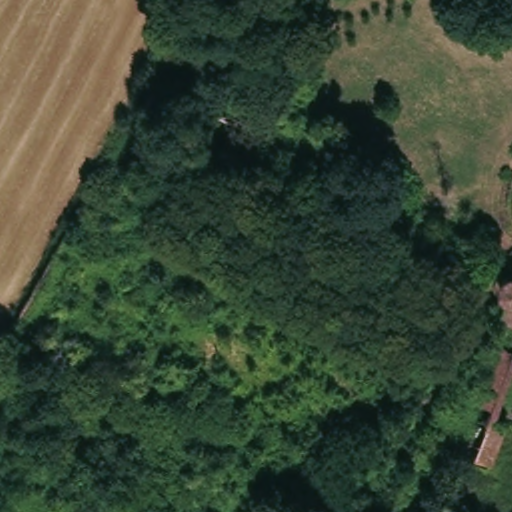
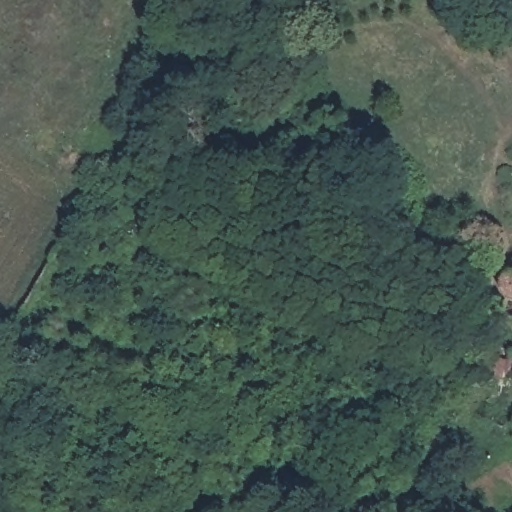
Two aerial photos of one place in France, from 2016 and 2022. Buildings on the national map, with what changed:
unchanged [(457,5),(449,0),(460,0),(457,5)]
unchanged [(160,208),(152,221),(128,208),(136,195),(160,208)]
unchanged [(504,301),(500,298),(500,295),(500,291),(501,287),(503,283),(506,279),(509,277),(512,276),(512,323),(507,321),(498,318),(504,301)]
unchanged [(498,318),(507,321),(512,323),(512,371),(493,423),(466,412),(498,318)]
unchanged [(431,365),(443,372),(439,379),(426,373),(431,365)]
unchanged [(466,412),(493,423),(507,429),(493,467),(453,451),(466,412)]

